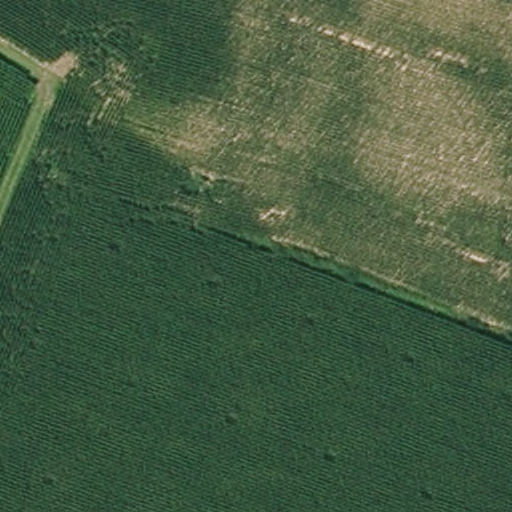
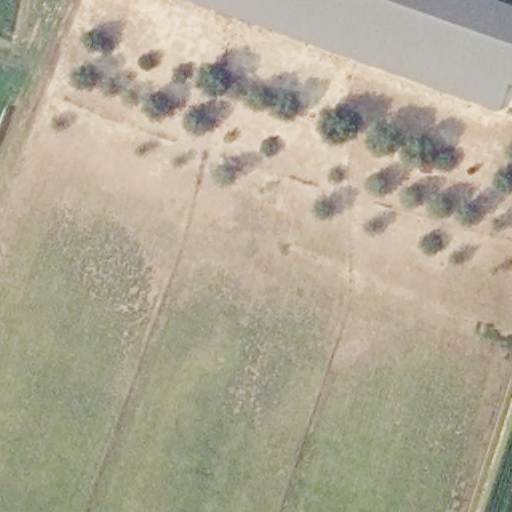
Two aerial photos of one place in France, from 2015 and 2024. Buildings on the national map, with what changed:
new [(508,85),(500,113),(186,0),(493,0),(512,7),(512,86),(508,85)]

